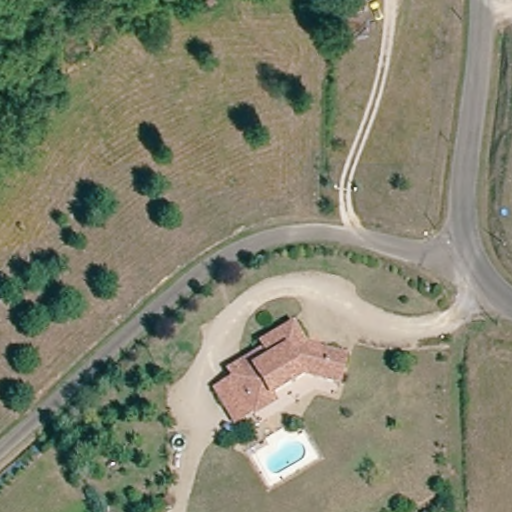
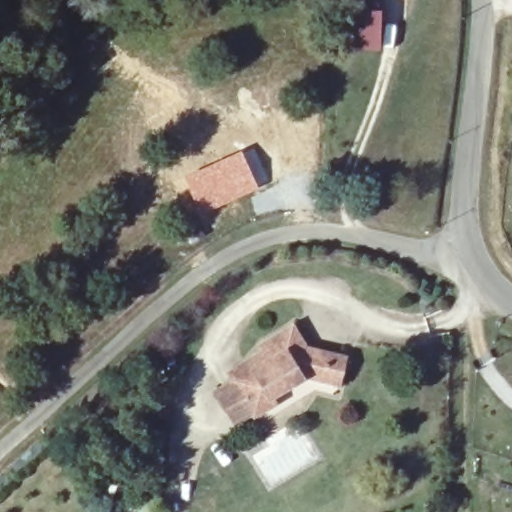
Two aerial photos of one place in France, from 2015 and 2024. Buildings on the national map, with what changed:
new [(242,149),(260,187),(201,213),(184,175),(242,149)]
unchanged [(237,377),(273,356),(271,350),(302,332),(317,362),(320,361),(321,358),(351,366),(345,392),(312,382),(278,402),(282,408),(262,420),(252,403),(237,377)]

